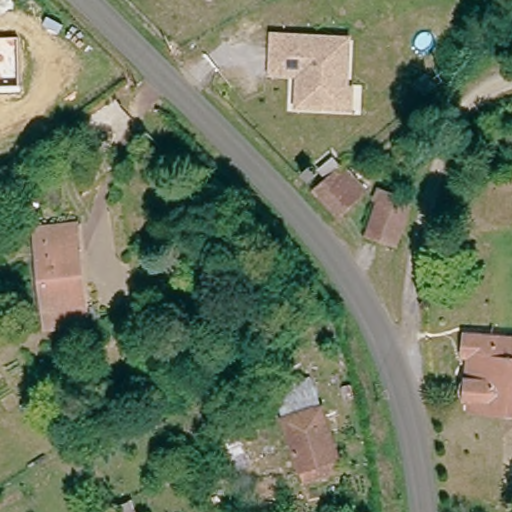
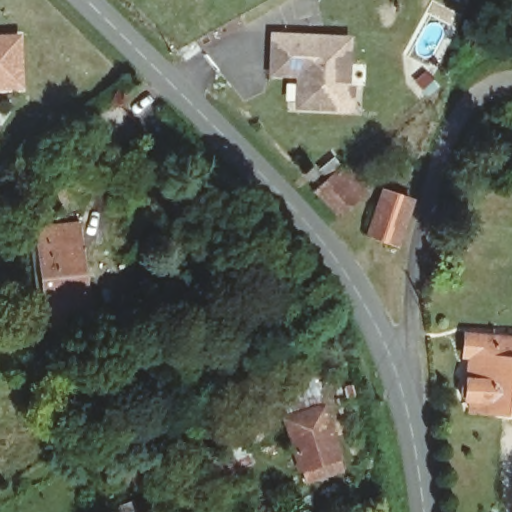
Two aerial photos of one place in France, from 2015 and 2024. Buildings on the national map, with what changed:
unchanged [(350,102),(302,105),(301,73),(273,75),(271,37),(347,33),(350,102)]
new [(22,86),(0,87),(0,35),(20,34),(22,86)]
demolished [(320,172),(314,166),(321,158),(328,164),(320,172)]
unchanged [(347,210),(325,183),(353,161),(370,182),(376,188),(358,202),(347,210)]
unchanged [(389,244),(360,231),(376,193),(405,206),(389,244)]
unchanged [(85,273),(91,297),(97,320),(53,332),(28,233),(70,222),(81,268),(83,273),(85,273)]
unchanged [(490,412),(477,410),(469,402),(465,388),(473,382),(475,360),(471,359),(474,337),(512,341),(512,363),(495,361),(490,412)]
unchanged [(512,363),(512,414),(490,412),(495,361),(512,363)]
unchanged [(281,419),(324,402),(345,468),(306,486),(281,419)]

